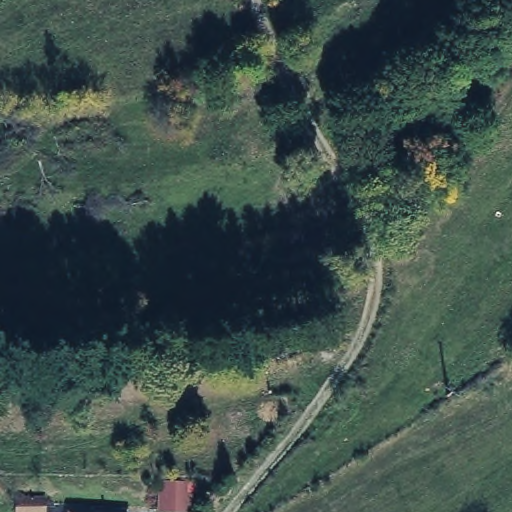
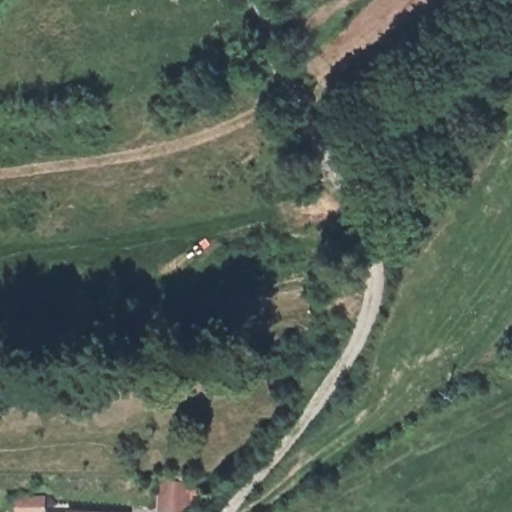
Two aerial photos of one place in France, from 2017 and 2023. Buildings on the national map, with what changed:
unchanged [(43,490),(44,508),(16,509),(15,492),(43,490)]
unchanged [(68,512),(68,508),(113,512),(68,512)]

